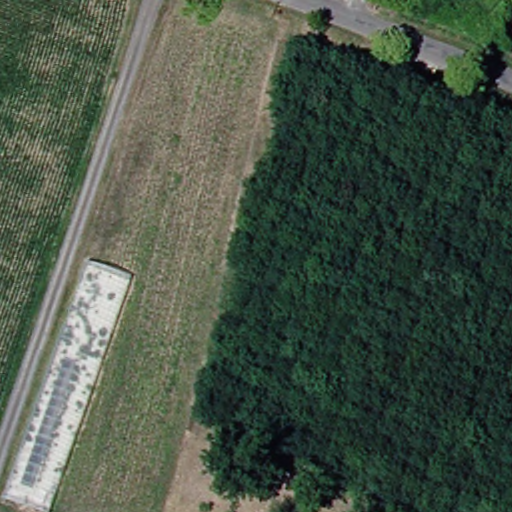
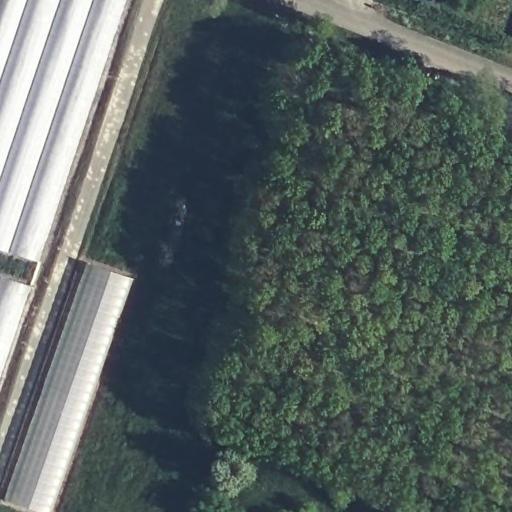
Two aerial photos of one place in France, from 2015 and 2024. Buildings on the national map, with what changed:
new [(0,249),(0,0),(126,0),(39,261),(0,249)]
new [(87,263),(131,278),(49,512),(34,512),(4,501),(87,263)]
new [(30,286),(0,377),(0,276),(30,286)]

